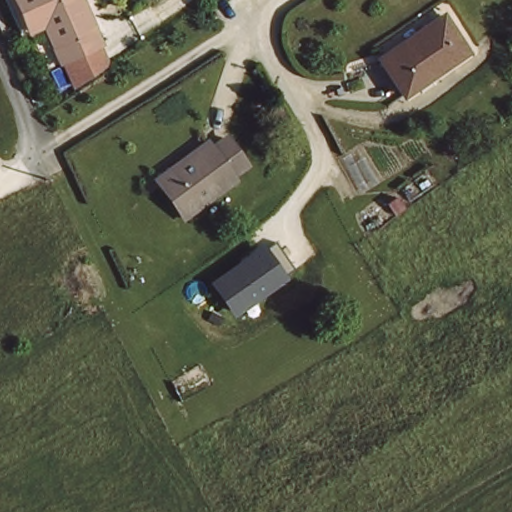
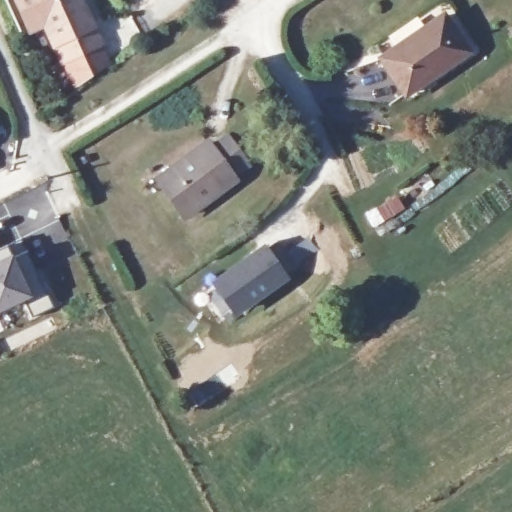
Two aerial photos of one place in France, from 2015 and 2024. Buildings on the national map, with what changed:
unchanged [(50,28),(36,34),(31,23),(20,0),(83,0),(105,48),(113,65),(76,84),(68,68),(50,28)]
unchanged [(465,55),(403,99),(379,65),(441,20),(465,55)]
unchanged [(230,175),(233,180),(181,218),(160,189),(153,180),(185,158),(204,143),(208,149),(224,139),(243,165),(230,175)]
unchanged [(265,245),(267,249),(276,243),(294,269),(286,275),(290,280),(235,317),(210,283),(265,245)]
new [(25,300),(0,313),(0,249),(8,246),(13,258),(25,251),(51,307),(32,317),(25,300)]

